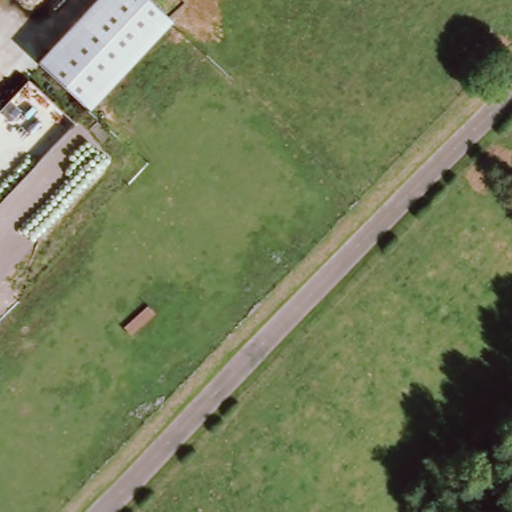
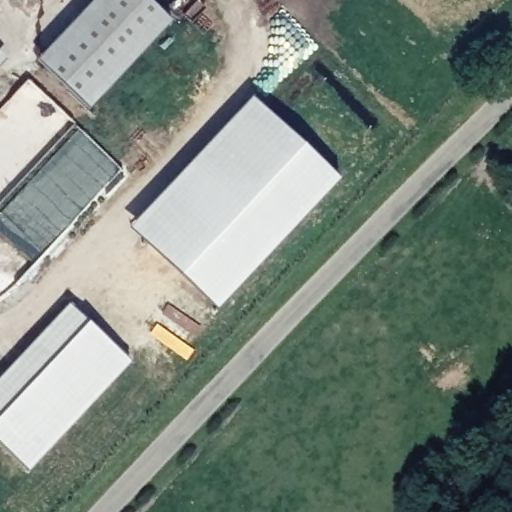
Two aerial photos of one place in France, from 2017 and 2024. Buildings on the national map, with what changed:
unchanged [(94,0),(148,0),(170,20),(89,108),(37,62),(94,0)]
new [(215,311),(127,228),(251,96),(339,179),(215,311)]
new [(0,444),(0,378),(70,303),(130,363),(28,471),(0,444)]

